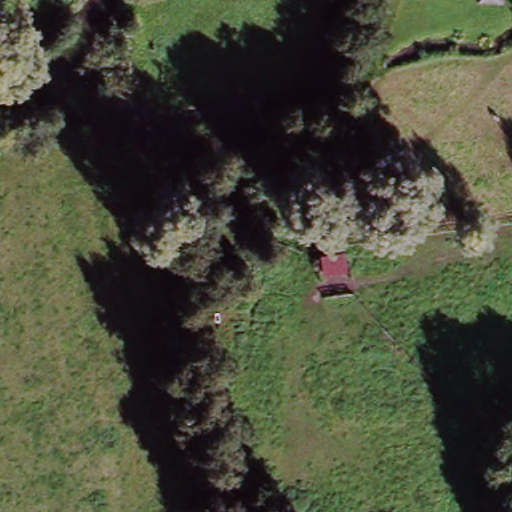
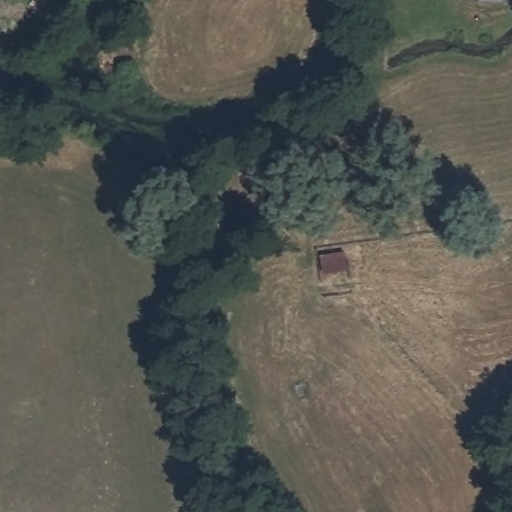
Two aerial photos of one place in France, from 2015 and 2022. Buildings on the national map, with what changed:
unchanged [(506,4),(485,5),(485,0),(506,0),(506,4)]

